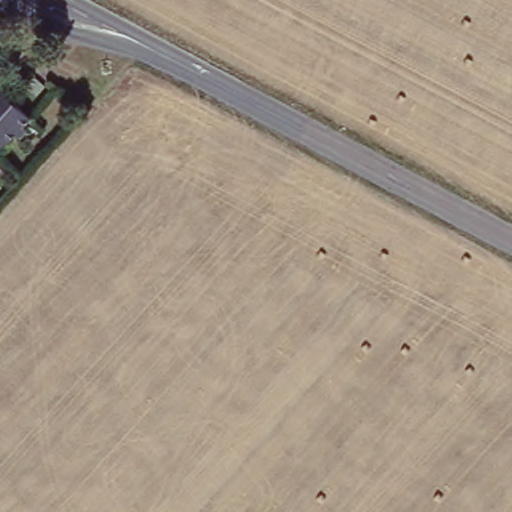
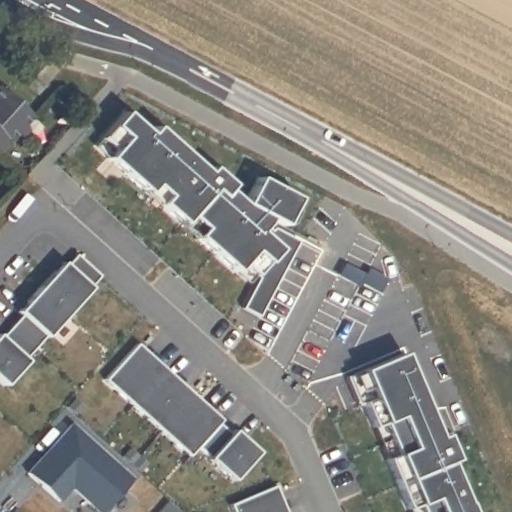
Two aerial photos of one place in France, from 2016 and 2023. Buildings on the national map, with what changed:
unchanged [(30,118),(0,152),(0,91),(30,118)]
new [(128,115),(154,136),(160,130),(211,175),(215,171),(236,188),(231,194),(247,209),(262,181),(301,202),(287,230),(273,222),(269,229),(273,234),(276,231),(301,244),(262,321),(247,312),(262,282),(247,267),(239,275),(99,150),(128,115)]
new [(0,375),(0,333),(1,333),(4,336),(25,314),(21,309),(67,260),(70,264),(80,253),(102,273),(51,335),(47,331),(26,355),(30,358),(8,383),(0,375)]
new [(225,418),(221,422),(234,433),(237,429),(261,451),(236,479),(200,446),(192,455),(107,378),(141,341),(225,418)]
new [(406,352),(442,435),(447,433),(457,459),(452,461),(473,512),(413,512),(366,401),(361,404),(349,376),(406,352)]
new [(278,484),(290,512),(237,512),(233,503),(278,484)]

